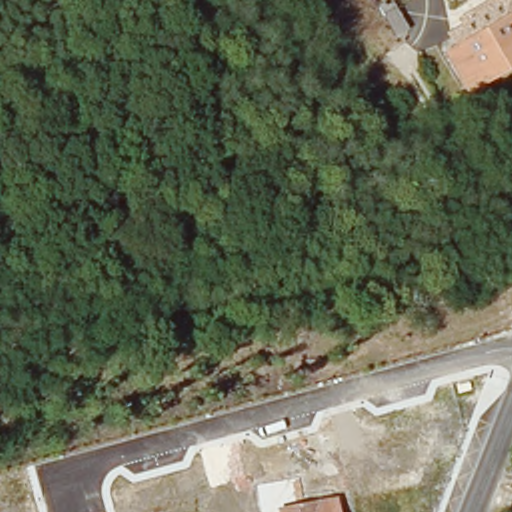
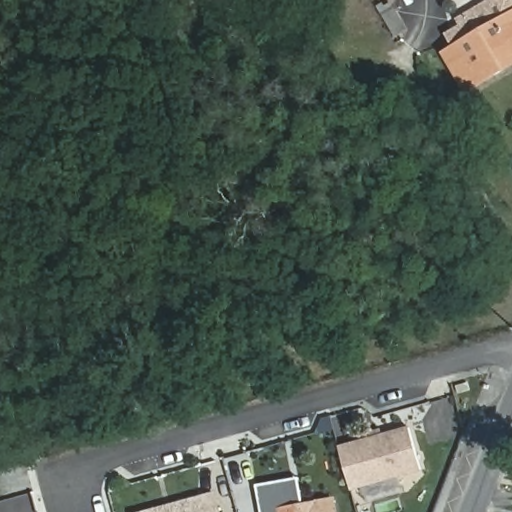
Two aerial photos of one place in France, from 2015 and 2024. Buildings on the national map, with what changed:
unchanged [(460,58),(462,57),(455,44),(469,36),(466,31),(473,28),(512,6),(512,71),(498,79),(501,85),(479,96),(471,101),(464,88),(450,64),(460,58)]
new [(370,438),(369,432),(380,429),(383,434),(410,427),(423,472),(352,491),(340,447),(370,438)]
new [(299,478),(304,502),(336,497),(339,512),(263,512),(257,485),(299,478)]
demolished [(238,487),(243,502),(253,499),(255,512),(174,512),(170,499),(238,487)]
new [(217,492),(223,512),(141,512),(217,492)]
demolished [(333,506),(334,512),(307,512),(333,506)]

